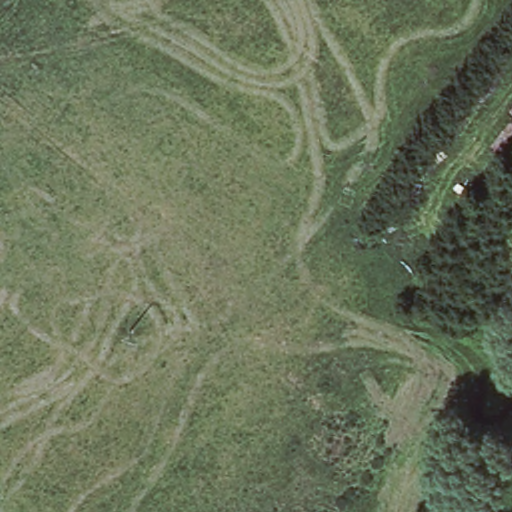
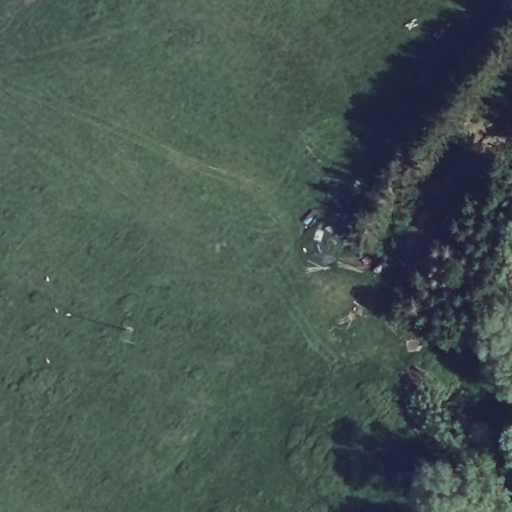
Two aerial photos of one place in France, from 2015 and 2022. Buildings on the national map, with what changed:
[]

